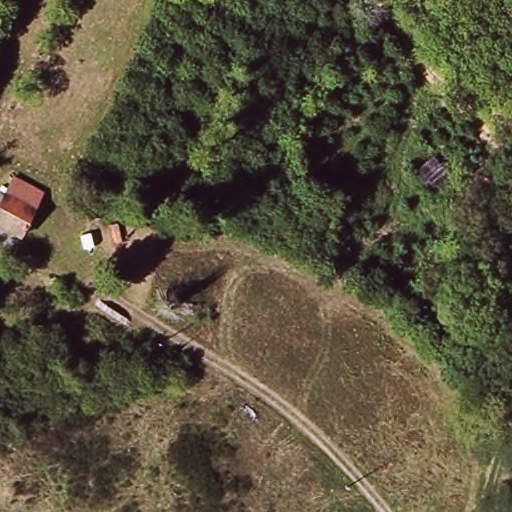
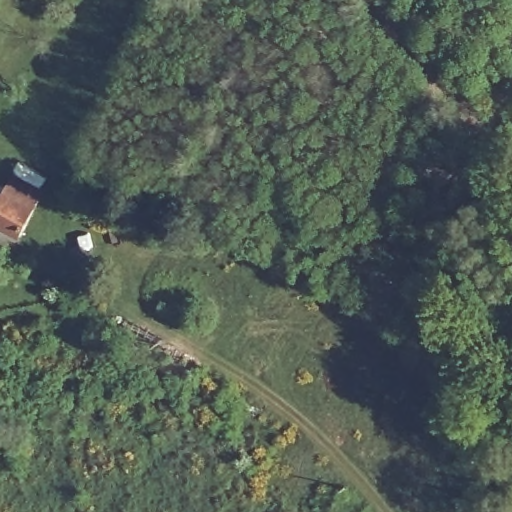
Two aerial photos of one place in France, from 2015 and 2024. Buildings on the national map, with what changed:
unchanged [(0,224),(0,199),(11,178),(40,194),(18,235),(0,224)]

